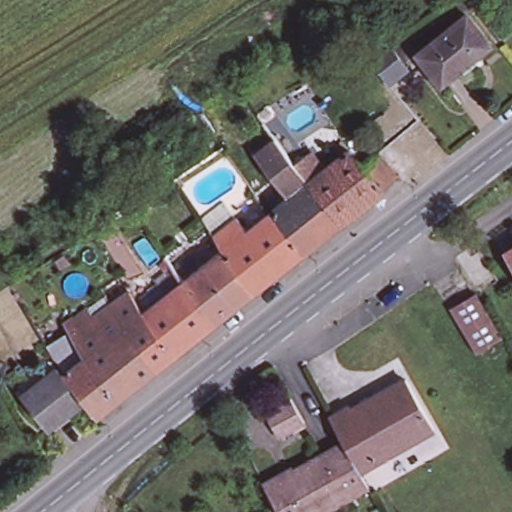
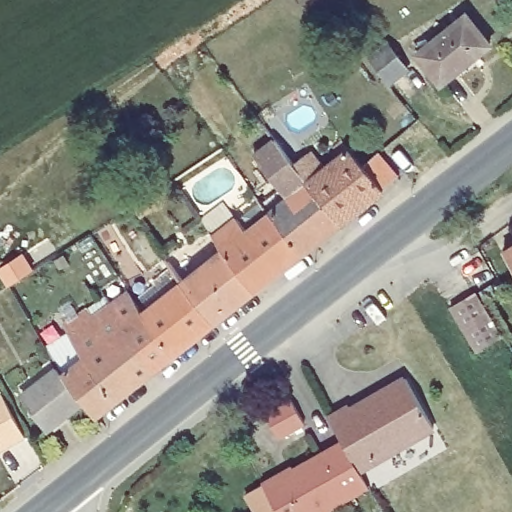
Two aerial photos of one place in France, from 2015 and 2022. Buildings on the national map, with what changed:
unchanged [(466,15),(490,46),(441,86),(417,54),(466,15)]
unchanged [(387,45),(408,69),(390,85),(369,60),(387,45)]
unchanged [(332,145),(341,138),(348,146),(360,161),(376,149),(396,174),(380,187),(381,187),(338,221),(305,180),(286,196),(252,152),(272,135),(290,159),(300,152),(315,172),(338,154),(332,145)]
unchanged [(262,204),(271,196),(277,204),(286,196),(305,180),(338,221),(299,252),(252,289),(220,248),(222,247),(215,239),(212,234),(215,230),(219,228),(233,217),(244,230),(267,211),(262,204)]
unchanged [(82,249),(60,264),(57,259),(79,244),(82,249)]
unchanged [(220,248),(252,289),(212,320),(180,280),(220,248)]
unchanged [(512,248),(512,267),(503,253),(512,248)]
unchanged [(475,296),(457,268),(460,266),(482,252),(499,278),(487,287),(477,294),(475,296)]
unchanged [(172,286),(164,276),(172,271),(179,280),(180,280),(212,320),(172,352),(140,311),(150,303),(172,286)]
unchanged [(127,289),(140,311),(172,352),(153,367),(107,302),(127,289)]
unchanged [(82,355),(82,356),(60,320),(80,306),(86,316),(107,302),(153,367),(115,397),(82,355)]
unchanged [(47,358),(55,366),(60,373),(54,362),(64,355),(70,365),(82,356),(82,355),(115,397),(93,414),(80,398),(45,424),(20,389),(13,380),(47,358)]
unchanged [(342,398),(345,402),(398,371),(431,426),(357,470),(337,434),(322,410),(342,398)]
new [(0,395),(3,393),(27,437),(0,452),(0,395)]
unchanged [(288,397),(303,421),(280,434),(266,410),(288,397)]
unchanged [(337,434),(357,470),(367,485),(345,498),(315,447),(337,434)]
unchanged [(278,467),(282,474),(288,470),(285,465),(315,447),(345,498),(322,512),(278,512),(260,478),(278,467)]

